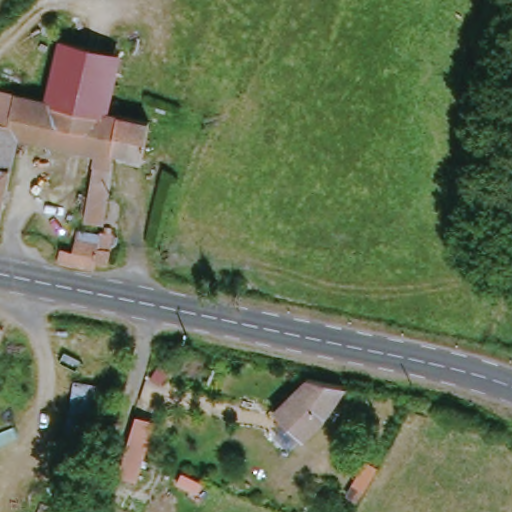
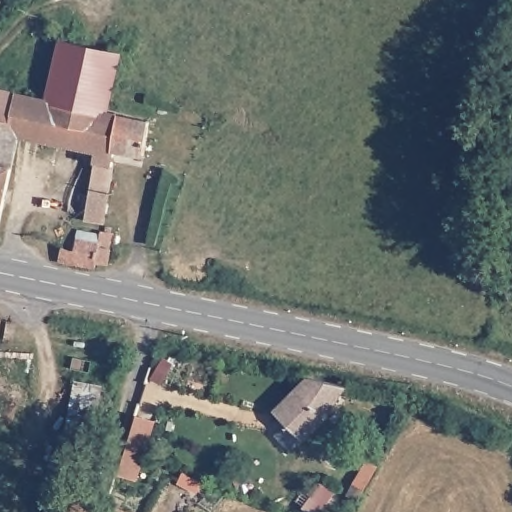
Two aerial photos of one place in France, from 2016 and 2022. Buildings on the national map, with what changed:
unchanged [(44,97),(58,36),(120,51),(106,112),(44,97)]
unchanged [(148,132),(161,136),(159,157),(118,149),(102,224),(83,221),(97,152),(18,135),(21,122),(0,117),(0,87),(44,97),(106,112),(150,122),(148,132)]
unchanged [(18,135),(0,211),(0,117),(21,122),(18,135)]
unchanged [(110,238),(106,270),(51,257),(54,242),(60,243),(63,227),(70,229),(110,238)]
unchanged [(304,376),(346,387),(303,441),(271,412),(304,376)]
unchanged [(106,388),(91,461),(61,455),(74,383),(106,388)]
unchanged [(158,417),(136,475),(120,468),(142,412),(158,417)]

